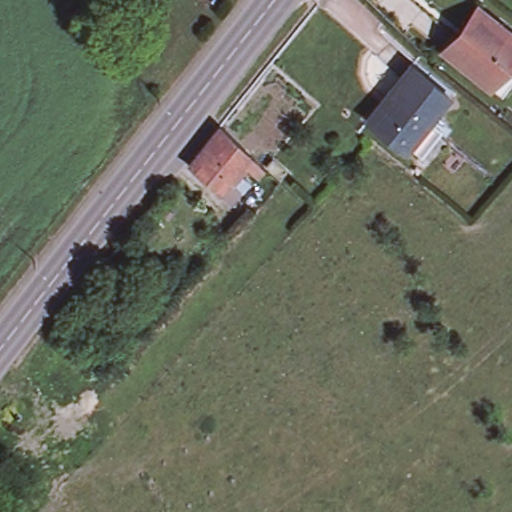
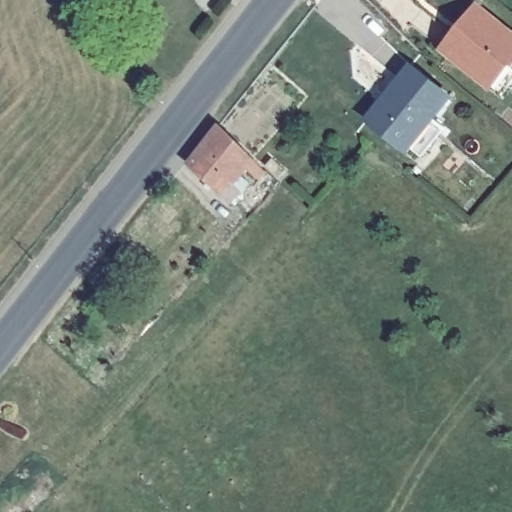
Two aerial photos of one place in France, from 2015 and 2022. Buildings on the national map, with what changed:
unchanged [(493,97),(482,87),(437,50),(467,5),(512,43),(512,48),(499,65),(512,74),(493,97)]
unchanged [(362,112),(407,62),(425,75),(407,102),(406,102),(382,129),(362,112)]
unchanged [(425,75),(446,94),(426,117),(437,128),(415,152),(404,141),(400,145),(382,129),(406,102),(407,102),(425,75)]
unchanged [(258,170),(250,179),(237,166),(212,192),(182,162),(213,123),(258,170)]
unchanged [(255,184),(252,181),(260,172),(263,176),(255,184)]

